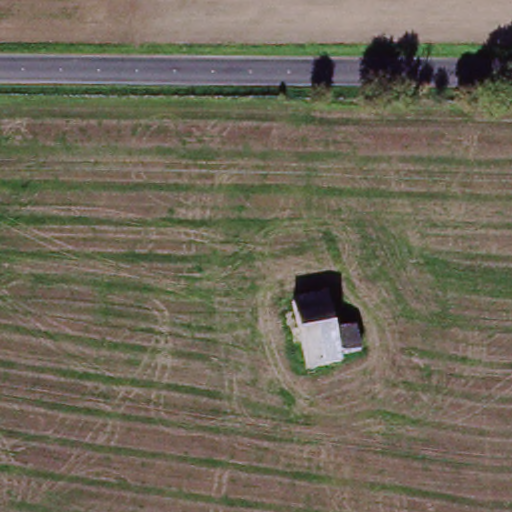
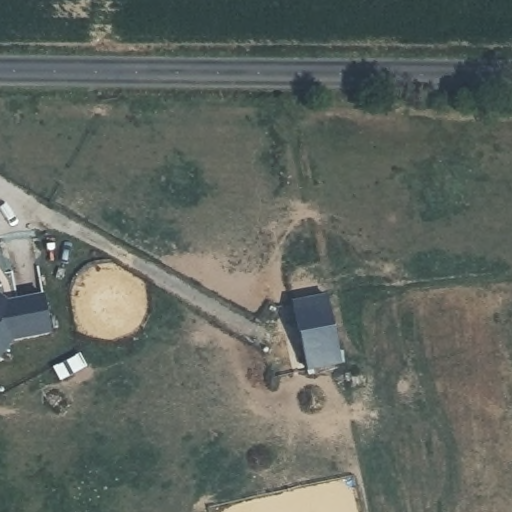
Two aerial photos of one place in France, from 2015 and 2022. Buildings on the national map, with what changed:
new [(9,300),(44,294),(53,334),(13,341),(0,358),(0,293),(9,300)]
unchanged [(333,357),(334,361),(328,362),(301,368),(286,302),(305,298),(319,295),(327,330),(350,325),(356,352),(333,357)]

